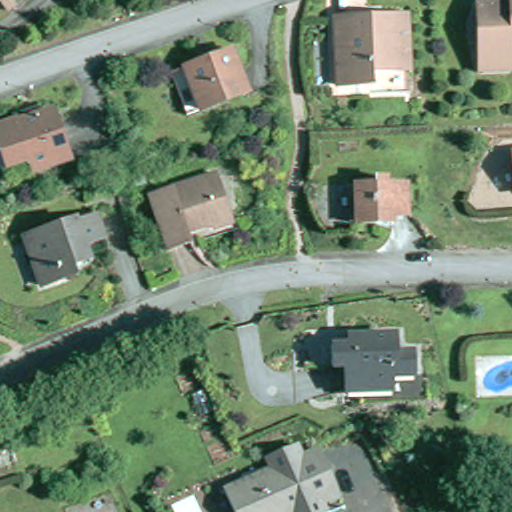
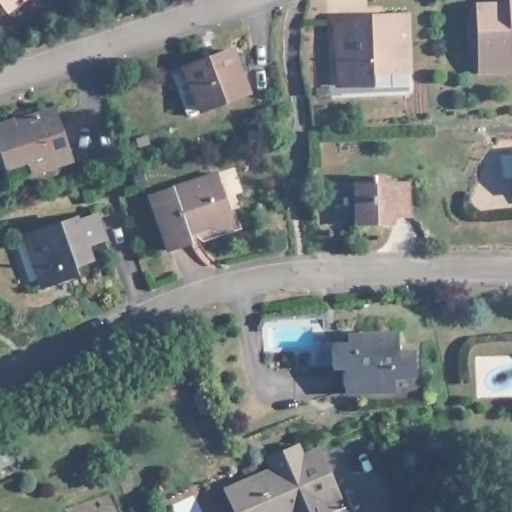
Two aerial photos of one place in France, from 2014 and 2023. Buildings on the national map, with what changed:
unchanged [(0,9),(0,0),(12,0),(0,9)]
unchanged [(487,73),(487,54),(479,48),(486,39),(486,36),(479,29),(485,18),(484,7),(511,6),(511,0),(512,0),(512,72),(487,73)]
unchanged [(413,75),(376,76),(377,88),(341,89),(338,27),(356,26),(356,23),(411,21),(413,75)]
unchanged [(184,73),(198,67),(244,50),(261,94),(216,111),(200,117),(184,73)]
unchanged [(13,187),(0,149),(0,133),(23,125),(23,128),(62,116),(77,159),(78,165),(41,178),(13,187)]
unchanged [(232,224),(213,230),(203,227),(186,233),(189,243),(166,250),(148,196),(216,174),(232,224)]
unchanged [(383,225),(361,226),(361,218),(359,184),(380,182),(382,179),(384,177),(389,177),(394,183),(414,183),(414,204),(414,218),(399,218),(399,225),(383,225)]
unchanged [(103,238),(84,245),(89,259),(61,268),(64,277),(41,285),(23,235),(75,218),(75,221),(95,215),(103,238)]
unchanged [(349,395),(348,375),(335,374),(334,347),(346,347),(348,332),(401,333),(400,353),(416,353),(417,380),(397,380),(397,394),(349,395)]
unchanged [(234,485),(274,470),(269,457),(299,444),(304,456),(321,449),(341,494),(324,502),(329,512),(234,512),(224,490),(234,485)]

